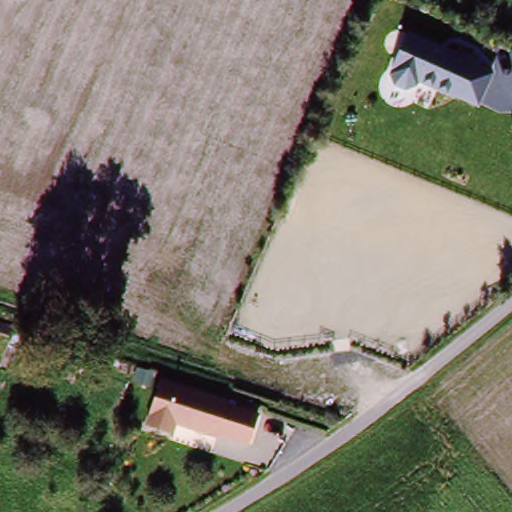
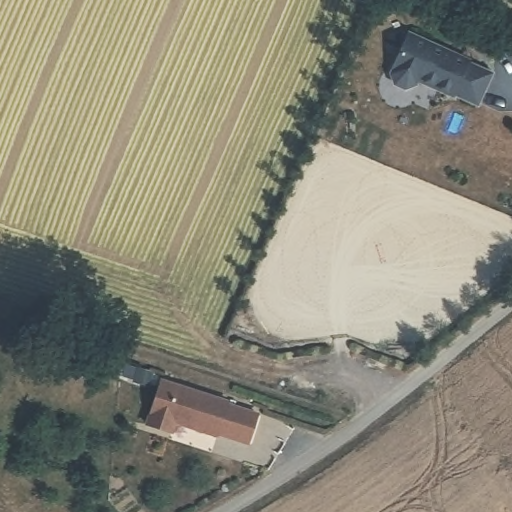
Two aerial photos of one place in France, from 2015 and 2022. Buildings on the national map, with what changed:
unchanged [(425,83),(418,90),(396,82),(410,33),(502,73),(485,108),(425,83)]
unchanged [(176,418),(172,429),(156,421),(165,377),(262,410),(252,445),(176,418)]

